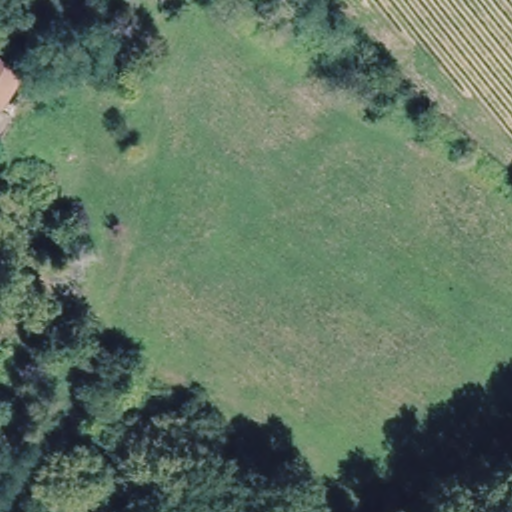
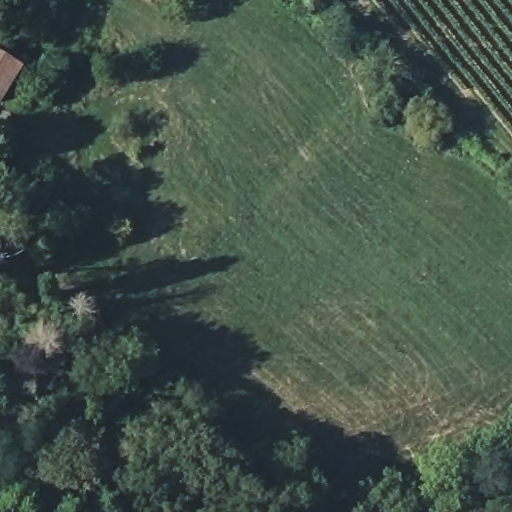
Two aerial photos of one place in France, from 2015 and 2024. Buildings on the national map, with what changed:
unchanged [(17,70),(0,93),(0,58),(17,70)]

